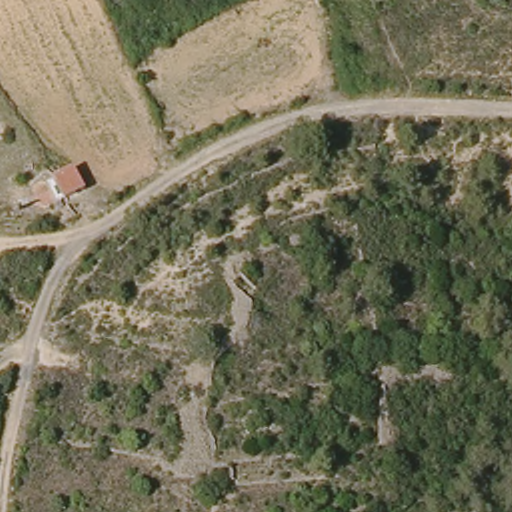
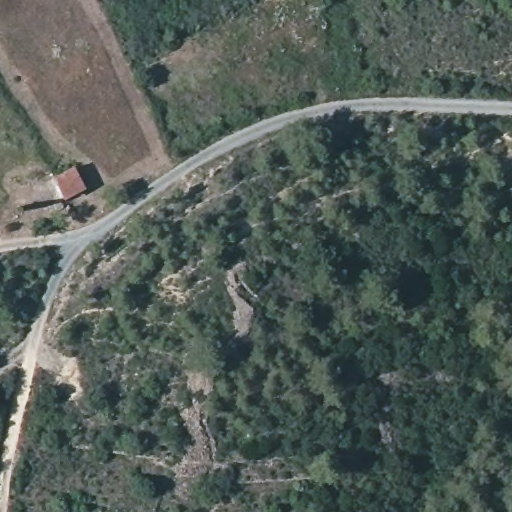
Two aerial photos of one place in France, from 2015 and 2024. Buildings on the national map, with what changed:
unchanged [(82,171),(94,192),(74,206),(60,182),(82,171)]

